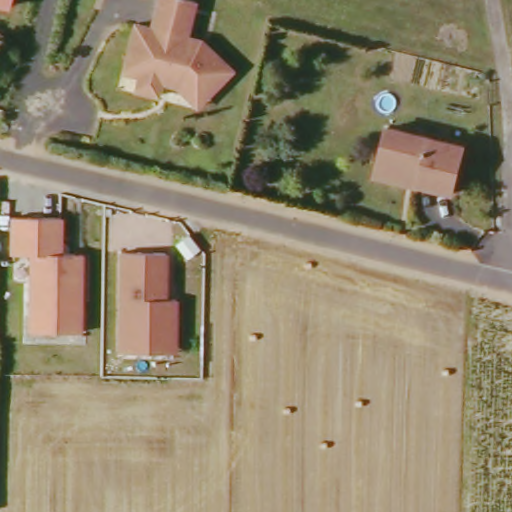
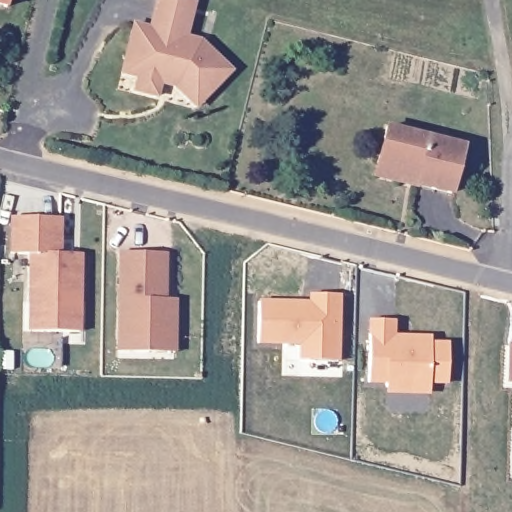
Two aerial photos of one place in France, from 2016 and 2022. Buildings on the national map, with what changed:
unchanged [(10,9),(0,7),(0,0),(11,0),(10,9)]
unchanged [(125,64),(135,26),(151,29),(158,0),(179,0),(196,4),(187,37),(201,43),(231,70),(203,101),(181,78),(164,75),(159,96),(136,92),(139,77),(123,73),(125,64)]
unchanged [(380,178),(384,164),(394,128),(470,145),(459,191),(426,184),(424,188),(380,178)]
unchanged [(11,221),(63,222),(62,256),(84,256),(82,334),(28,333),(30,257),(11,257),(11,221)]
unchanged [(119,254),(170,257),(169,302),(179,302),(179,356),(118,354),(119,254)]
new [(298,362),(298,347),(257,347),(258,301),(308,302),(308,294),(341,295),(339,363),(298,362)]
new [(430,385),(430,396),(385,395),(385,385),(367,385),(368,321),(395,321),(395,336),(430,336),(430,342),(449,342),(449,386),(430,385)]
new [(507,343),(512,344),(512,383),(507,383),(507,343)]

